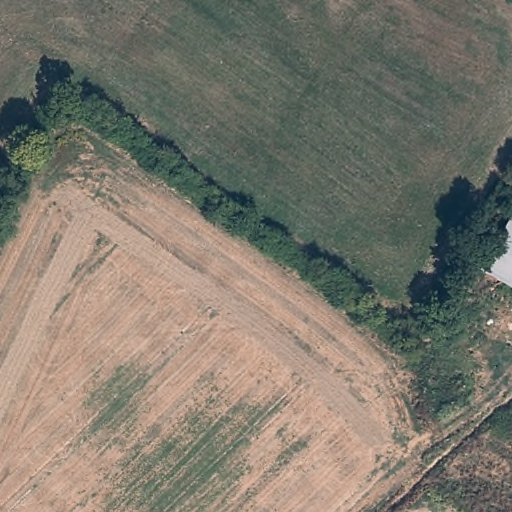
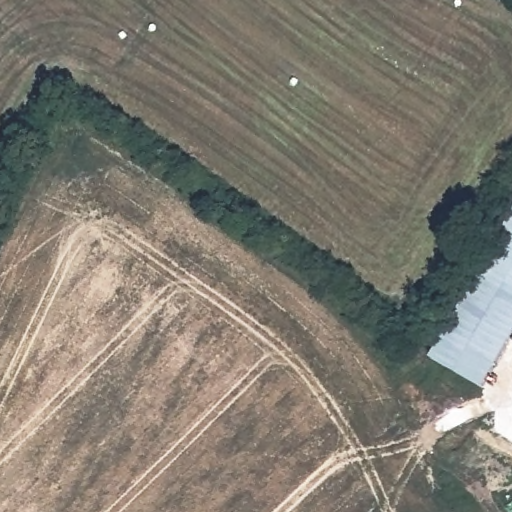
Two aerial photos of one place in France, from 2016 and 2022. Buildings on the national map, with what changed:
new [(428,359),(512,213),(512,341),(483,391),(428,359)]
demolished [(512,220),(512,292),(480,274),(512,220)]

